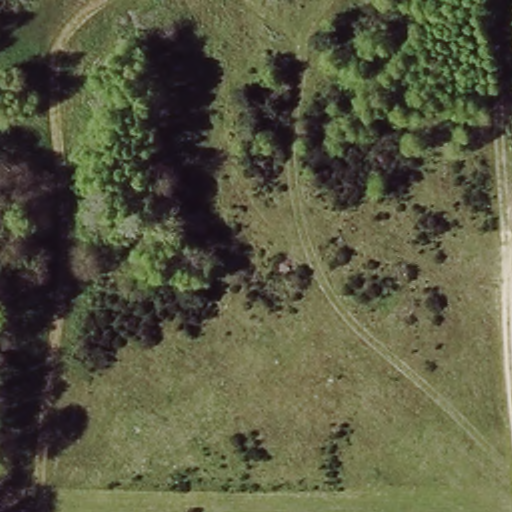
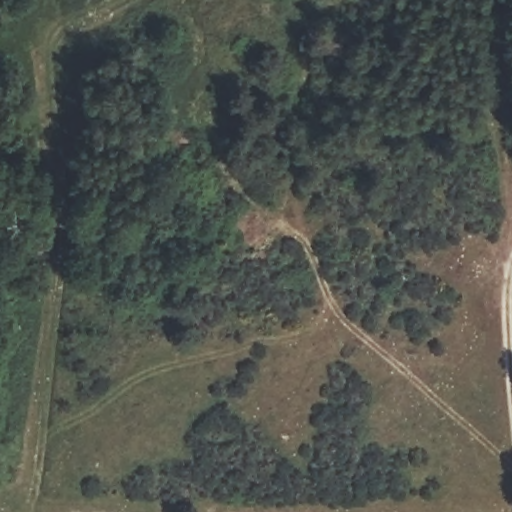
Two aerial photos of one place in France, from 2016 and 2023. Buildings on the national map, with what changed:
[]

